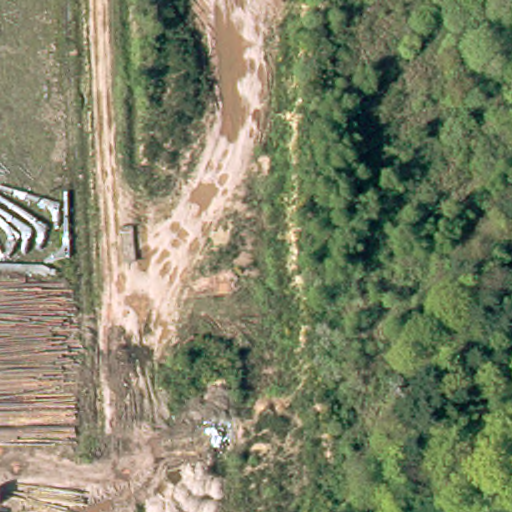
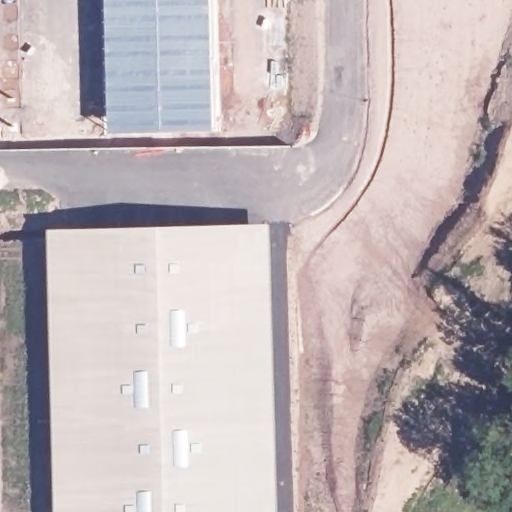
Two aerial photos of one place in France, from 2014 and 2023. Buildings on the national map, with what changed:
new [(271,222),(278,512),(56,512),(48,228),(271,222)]

